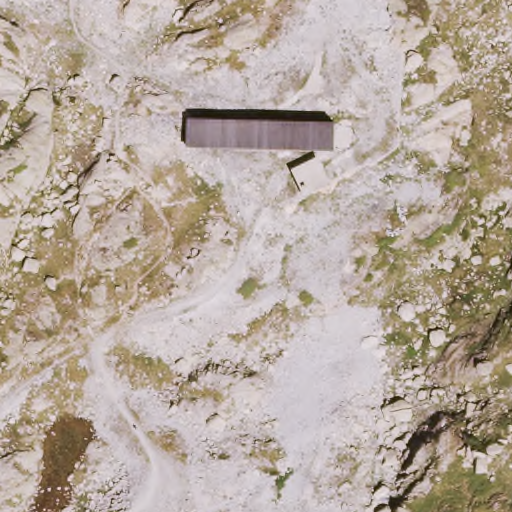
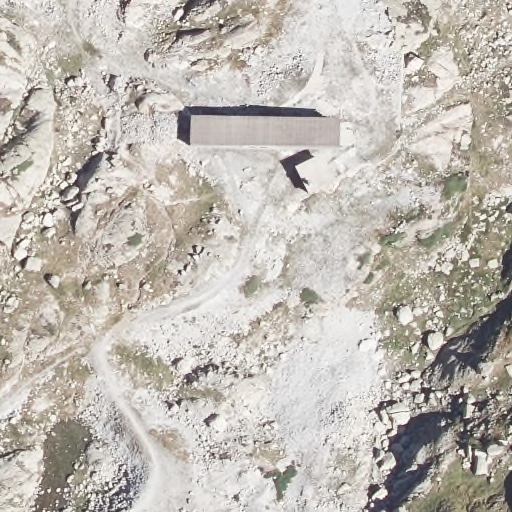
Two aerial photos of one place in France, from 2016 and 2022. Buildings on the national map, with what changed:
unchanged [(334,113),(334,143),(186,137),(187,110),(334,113)]
unchanged [(317,149),(330,172),(302,188),(290,162),(317,149)]

